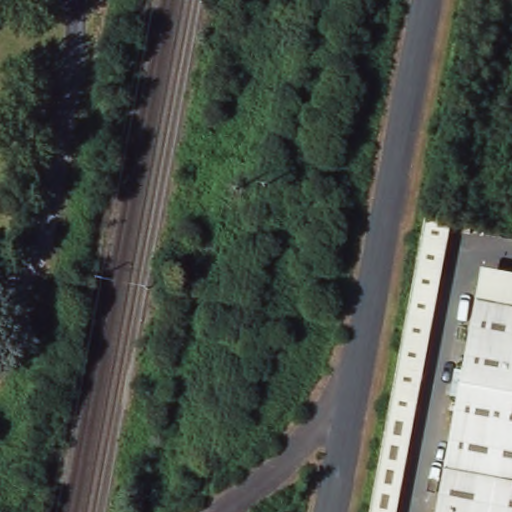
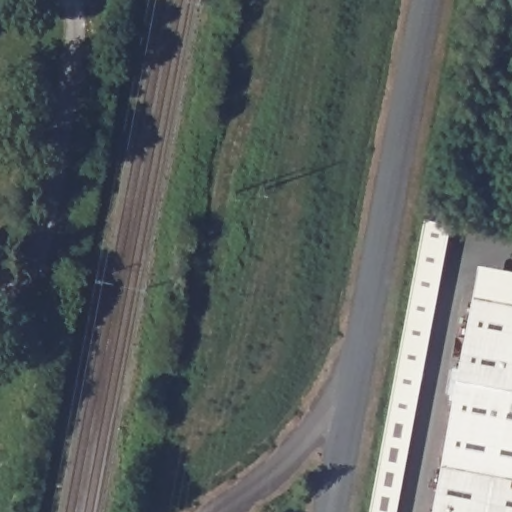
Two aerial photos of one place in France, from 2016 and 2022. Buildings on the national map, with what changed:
unchanged [(425,224),(426,219),(451,224),(432,322),(407,318),(425,224)]
unchanged [(487,270),(512,274),(512,306),(481,300),(487,270)]
unchanged [(463,399),(454,397),(459,373),(467,374),(481,300),(512,306),(512,512),(441,512),(463,399)]
unchanged [(407,318),(432,322),(422,371),(398,367),(407,318)]
unchanged [(398,367),(422,371),(396,512),(370,512),(398,367)]

